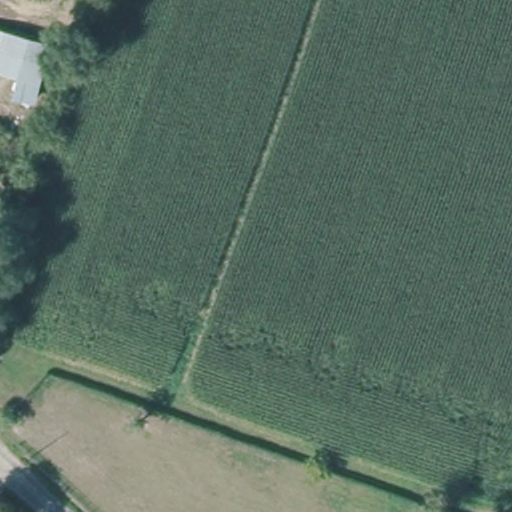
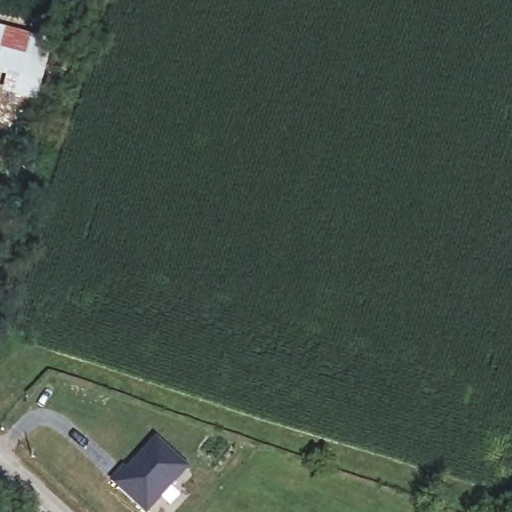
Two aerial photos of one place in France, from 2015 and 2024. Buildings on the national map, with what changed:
unchanged [(54,43),(44,85),(0,73),(0,59),(3,51),(0,51),(0,28),(54,43)]
unchanged [(5,226),(0,240),(0,224),(5,226)]
new [(134,455),(155,432),(190,465),(148,512),(143,512),(109,479),(134,455)]

